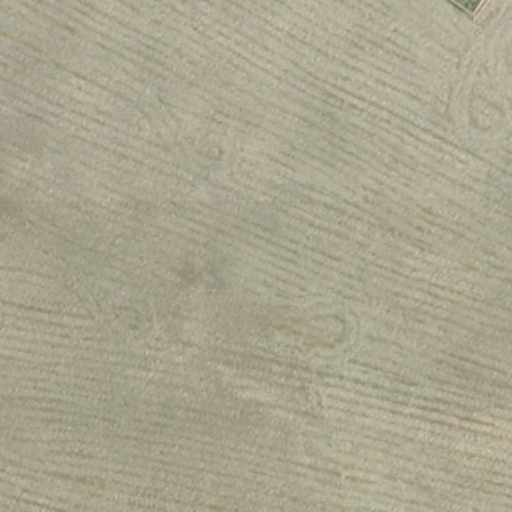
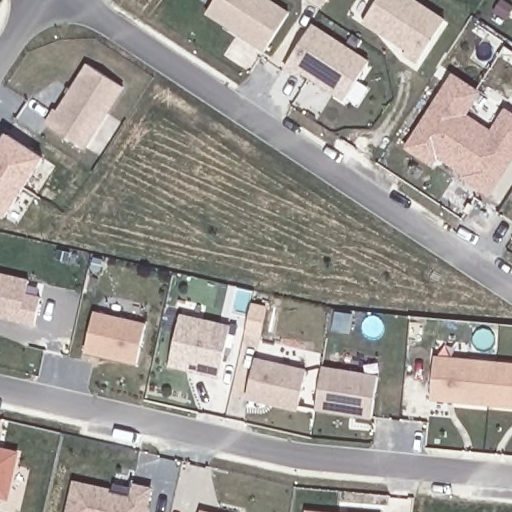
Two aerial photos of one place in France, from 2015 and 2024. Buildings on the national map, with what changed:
new [(275,0),(290,10),(266,47),(208,9),(214,0),(275,0)]
new [(416,0),(446,19),(419,60),(406,52),(408,47),(365,20),(378,0),(416,0)]
new [(311,24),(368,62),(344,98),(301,70),(298,74),(284,66),(311,24)]
new [(52,110),(55,112),(86,66),(120,87),(80,150),(42,125),(52,110)]
new [(478,93),(463,115),(491,134),(506,111),(512,115),(512,155),(488,192),(463,176),(465,174),(436,155),(431,162),(408,147),(454,77),(478,93)]
new [(6,136),(41,159),(3,217),(0,215),(0,146),(6,136)]
new [(28,282),(43,286),(39,299),(33,326),(0,317),(0,275),(28,282)]
new [(93,313),(145,325),(136,364),(85,353),(93,313)]
new [(180,315),(230,327),(219,376),(169,365),(180,315)]
new [(512,365),(512,406),(429,398),(433,357),(512,365)]
new [(255,360),(305,372),(296,411),(245,398),(255,360)]
new [(321,368),(376,377),(370,418),(314,410),(321,368)]
new [(15,455),(4,500),(0,498),(0,452),(15,455)]
new [(110,492),(112,483),(129,487),(129,485),(149,490),(144,512),(66,512),(73,483),(110,492)]

